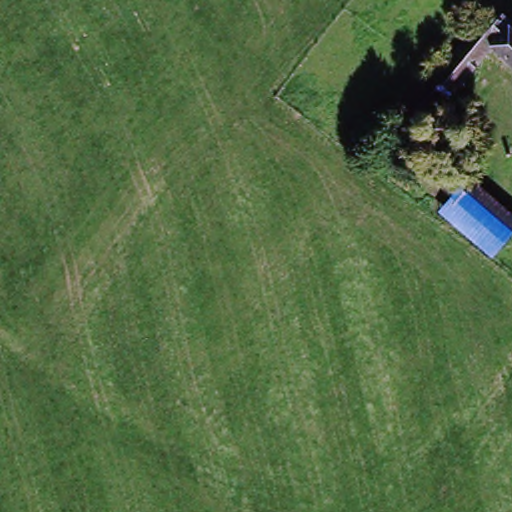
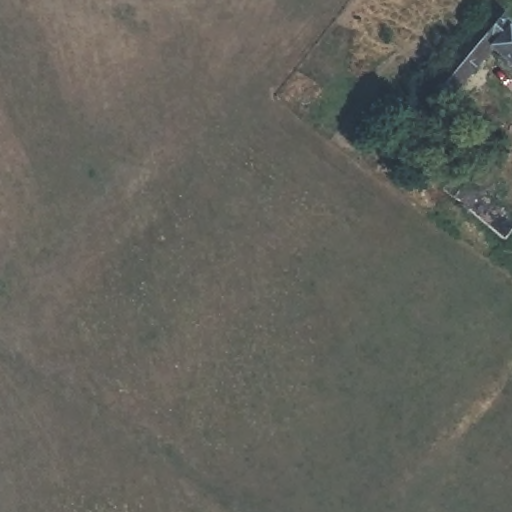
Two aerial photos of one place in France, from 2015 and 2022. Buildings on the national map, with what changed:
unchanged [(450,97),(429,79),(490,11),(510,30),(492,50),(450,97)]
unchanged [(512,32),(512,68),(492,50),(510,30),(512,32)]
unchanged [(457,200),(442,189),(459,169),(473,181),(503,207),(475,239),(445,214),(457,200)]
unchanged [(512,235),(494,256),(475,239),(503,207),(512,214),(512,235)]

